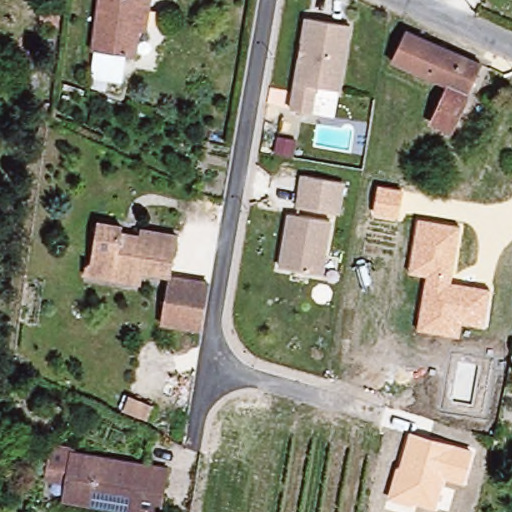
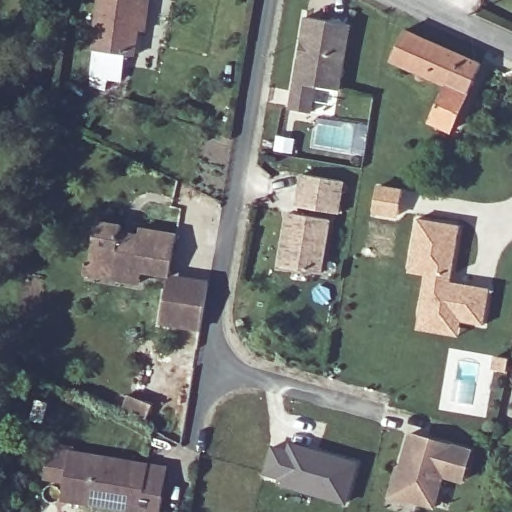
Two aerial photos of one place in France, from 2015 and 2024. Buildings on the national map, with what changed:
unchanged [(126,56),(123,76),(108,74),(105,89),(88,86),(95,51),(104,0),(150,0),(140,59),(126,56)]
unchanged [(342,92),(319,88),(315,115),(295,112),(311,19),(354,26),(342,92)]
unchanged [(479,70),(445,132),(427,122),(446,88),(391,58),(407,30),(479,70)]
unchanged [(296,158),(278,155),(281,139),(300,142),(296,158)]
unchanged [(335,215),(296,209),(301,177),(341,183),(335,215)]
new [(377,188),(402,193),(398,216),(373,212),(377,188)]
unchanged [(318,276),(278,270),(288,215),(328,222),(318,276)]
unchanged [(461,225),(451,282),(488,288),(482,326),(463,322),(461,336),(417,329),(425,275),(408,273),(416,217),(461,225)]
unchanged [(88,263),(95,221),(121,226),(120,234),(139,237),(140,230),(171,236),(164,276),(142,272),(140,284),(108,279),(85,275),(88,263)]
unchanged [(195,333),(166,328),(174,288),(195,292),(196,286),(204,287),(195,333)]
unchanged [(474,449),(465,484),(445,479),(436,512),(434,512),(388,500),(396,467),(400,465),(408,432),(474,449)]
new [(273,451),(290,454),(291,446),(359,461),(350,501),(282,486),(284,480),(268,477),(273,451)]
unchanged [(144,507),(62,496),(70,450),(147,461),(165,463),(160,494),(157,512),(143,512),(144,507)]

